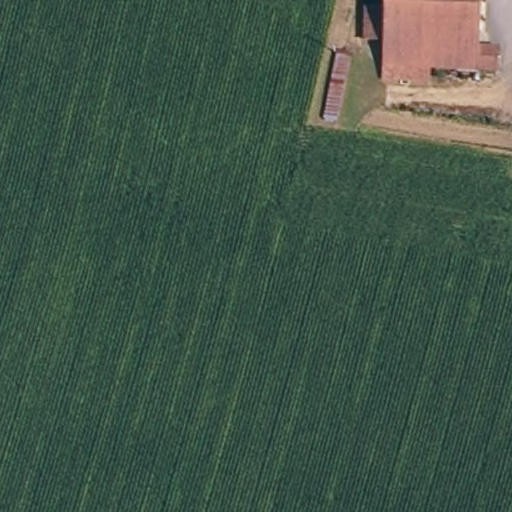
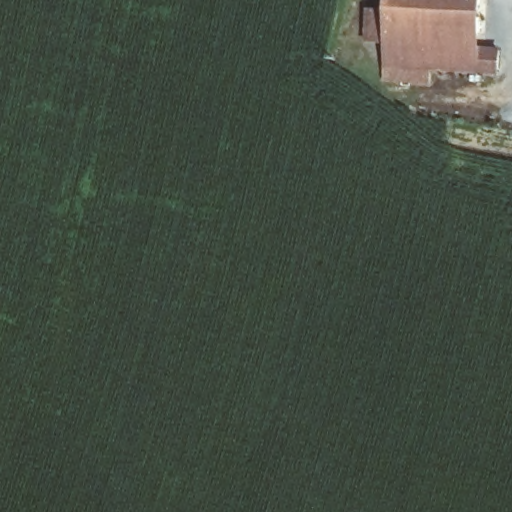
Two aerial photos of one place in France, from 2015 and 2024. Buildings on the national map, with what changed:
unchanged [(479,43),(500,46),(498,70),(433,65),(431,79),(386,76),(388,50),(364,47),(368,12),(392,16),(393,0),(482,0),(479,43)]

